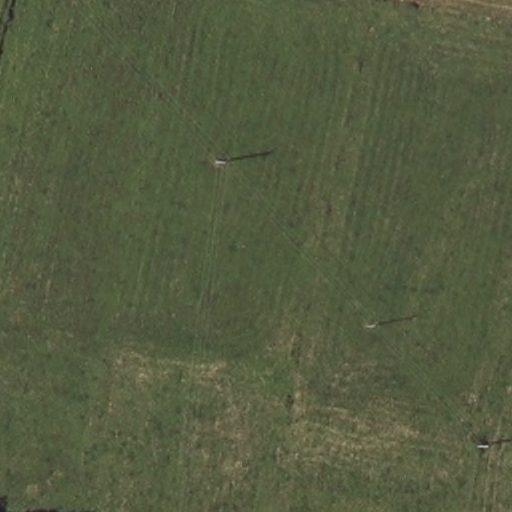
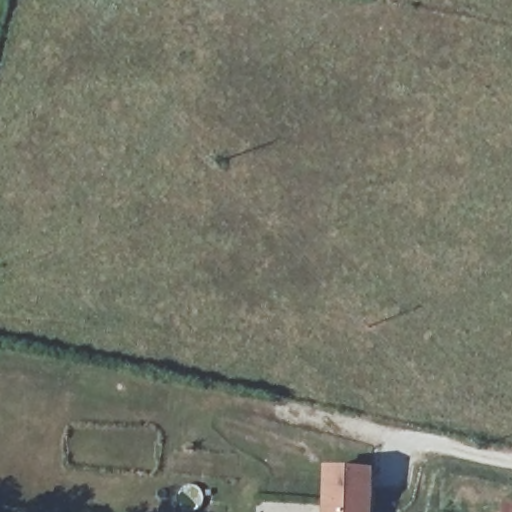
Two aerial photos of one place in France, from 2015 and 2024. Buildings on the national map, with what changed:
new [(326,467),(375,468),(373,512),(324,512),(326,467)]
new [(505,504),(512,504),(512,512),(504,512),(505,504)]

